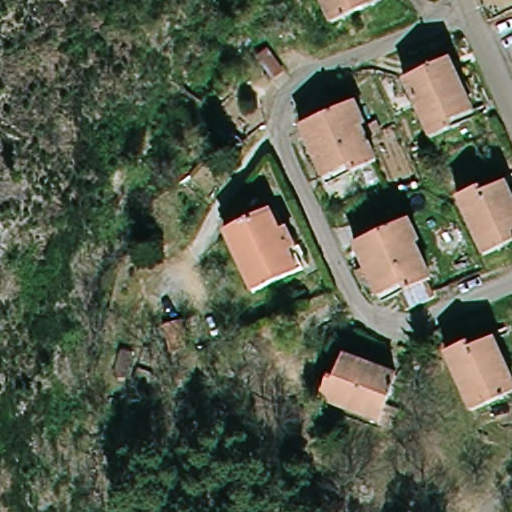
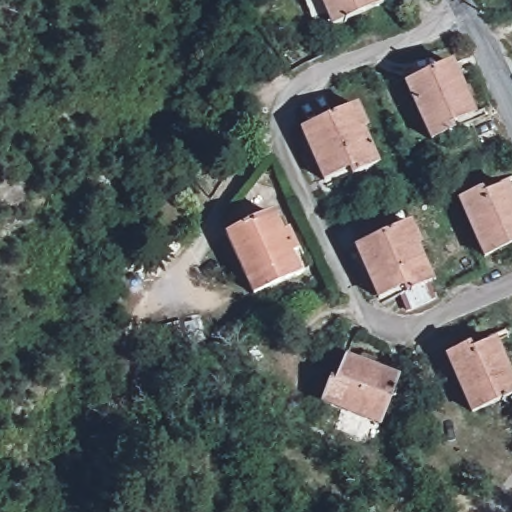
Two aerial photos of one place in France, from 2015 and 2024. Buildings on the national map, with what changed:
unchanged [(376,2),(327,24),(317,0),(375,0),(376,2)]
unchanged [(268,49),(278,72),(265,77),(255,54),(268,49)]
unchanged [(405,83),(451,63),(455,73),(456,76),(458,80),(460,82),(463,91),(466,98),(471,110),(472,113),(470,114),(461,118),(459,119),(455,121),(449,123),(451,129),(430,139),(421,119),(405,83)]
unchanged [(347,170),(345,172),(340,174),(333,177),(327,180),(325,181),(317,163),(315,159),(315,157),(313,155),(312,153),(311,151),(310,147),(308,145),(306,142),(301,130),(356,105),(366,127),(362,129),(370,148),(377,163),(355,174),(352,168),(347,170)]
unchanged [(247,136),(238,144),(225,129),(233,122),(247,136)]
unchanged [(504,180),(506,184),(512,198),(512,244),(485,257),(476,238),(459,200),(504,180)]
unchanged [(227,233),(271,212),(278,226),(280,229),(282,233),(287,231),(295,248),(297,252),(303,263),(305,268),(306,269),(255,293),(235,249),(227,233)]
unchanged [(403,305),(400,296),(406,293),(408,292),(406,287),(401,289),(399,290),(397,291),(392,293),(386,296),(383,297),(380,298),(368,274),(356,249),(411,224),(419,241),(419,243),(414,246),(431,281),(426,284),(430,293),(403,305)]
unchanged [(212,319),(223,341),(205,350),(195,327),(212,319)]
unchanged [(490,336),(493,343),(495,346),(496,349),(497,350),(500,355),(501,359),(508,374),(510,376),(510,378),(512,382),(512,394),(473,413),(462,391),(445,357),(490,336)]
unchanged [(341,355),(346,358),(359,362),(361,363),(363,364),(366,365),(377,369),(384,372),(389,374),(391,375),(393,375),(397,377),(380,423),(322,401),(336,368),(341,355)]

